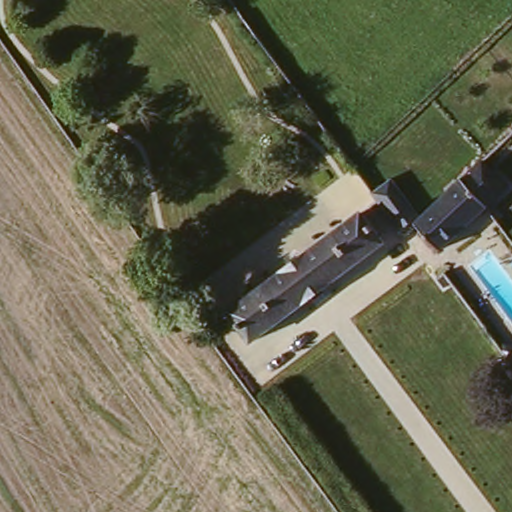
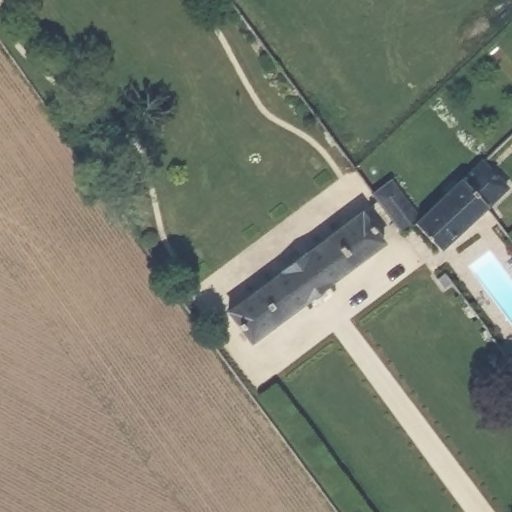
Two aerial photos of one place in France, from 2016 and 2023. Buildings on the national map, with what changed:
unchanged [(401,236),(404,233),(380,200),(373,190),(396,175),(426,212),(469,180),(488,204),(495,213),(424,266),(401,236)]
unchanged [(365,211),(389,244),(255,345),(230,312),(365,211)]
unchanged [(444,272),(455,286),(445,293),(435,279),(444,272)]

